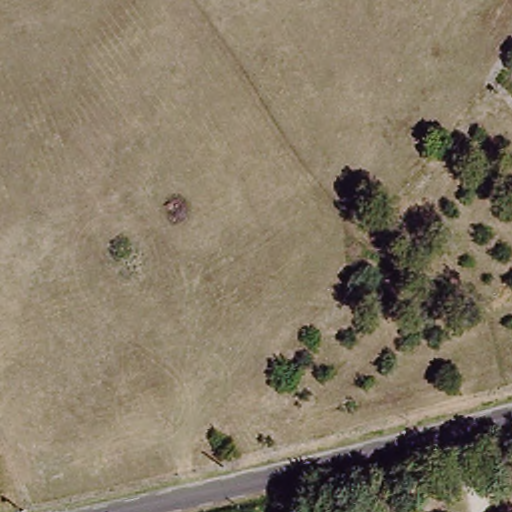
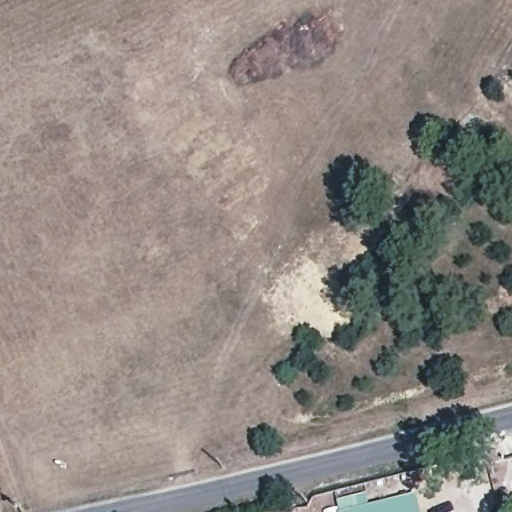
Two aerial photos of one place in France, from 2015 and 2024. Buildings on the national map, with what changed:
new [(367,496),(368,506),(415,494),(420,512),(339,512),(337,503),(367,496)]

